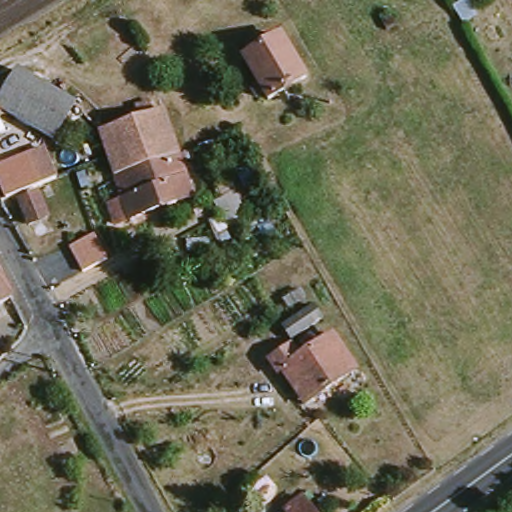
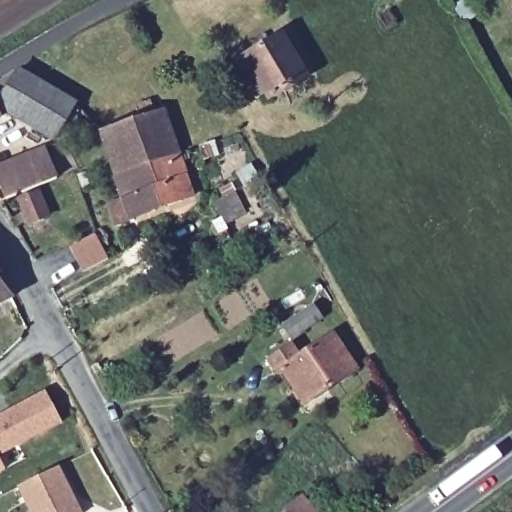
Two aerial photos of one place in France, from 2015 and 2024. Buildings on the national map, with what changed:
unchanged [(273,101),(247,59),(285,35),(311,80),(273,101)]
unchanged [(24,66),(29,69),(80,99),(61,135),(13,110),(0,117),(0,82),(24,66)]
unchanged [(119,179),(111,160),(103,133),(164,109),(182,156),(119,179)]
unchanged [(43,182),(10,197),(0,178),(0,171),(31,156),(43,182)]
unchanged [(195,198),(135,218),(119,179),(182,156),(195,198)]
unchanged [(54,217),(38,223),(28,203),(44,196),(54,217)]
new [(93,235),(106,260),(81,272),(69,247),(93,235)]
unchanged [(0,300),(0,266),(13,294),(0,300)]
unchanged [(297,338),(289,323),(319,304),(328,318),(297,338)]
unchanged [(309,356),(339,336),(362,371),(313,404),(292,372),(284,375),(277,363),(301,347),(309,356)]
new [(48,391),(64,424),(0,456),(0,416),(48,391)]
new [(7,469),(0,473),(0,457),(7,469)]
new [(56,470),(77,512),(28,512),(17,489),(56,470)]
unchanged [(311,504),(317,512),(300,512),(311,504)]

